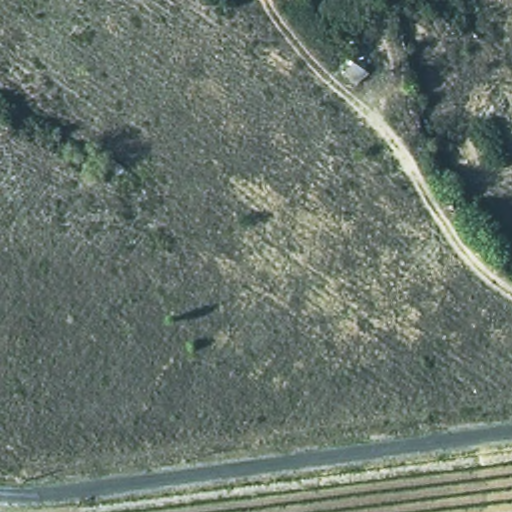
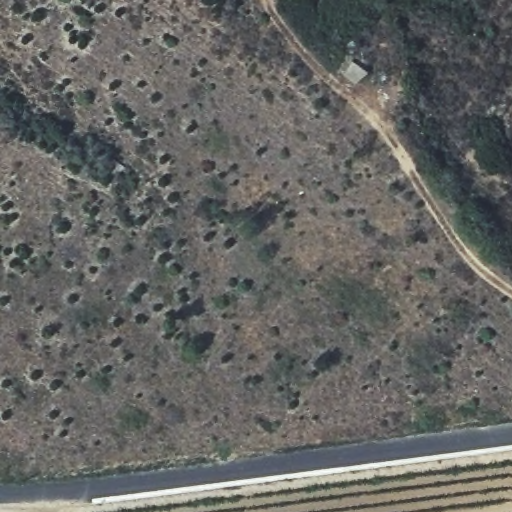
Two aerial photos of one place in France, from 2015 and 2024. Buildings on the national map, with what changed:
unchanged [(351,60),(369,70),(359,85),(344,73),(351,60)]

